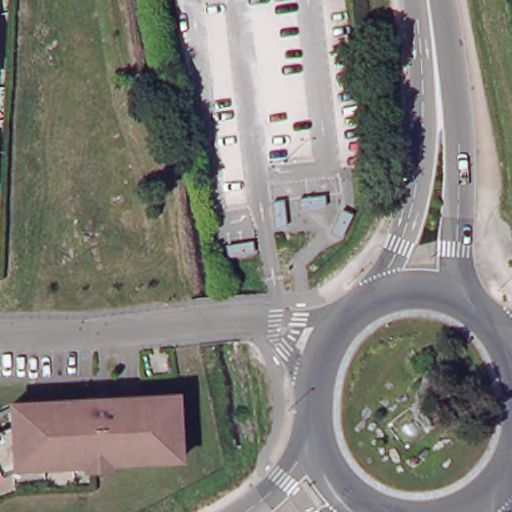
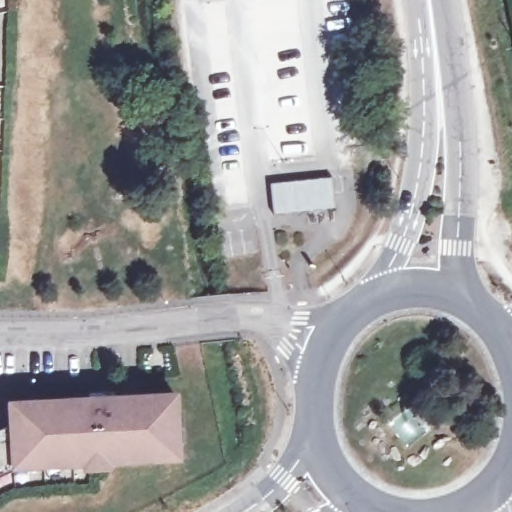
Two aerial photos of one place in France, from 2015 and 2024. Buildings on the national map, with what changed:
new [(332,175),(335,207),(272,213),(269,182),(332,175)]
unchanged [(3,410),(3,408),(102,403),(115,403),(135,402),(169,400),(171,423),(164,424),(165,441),(171,440),(173,464),(97,468),(97,463),(83,464),(83,468),(52,470),(51,462),(38,463),(38,471),(22,471),(21,464),(6,465),(0,467),(0,411),(3,410)]

